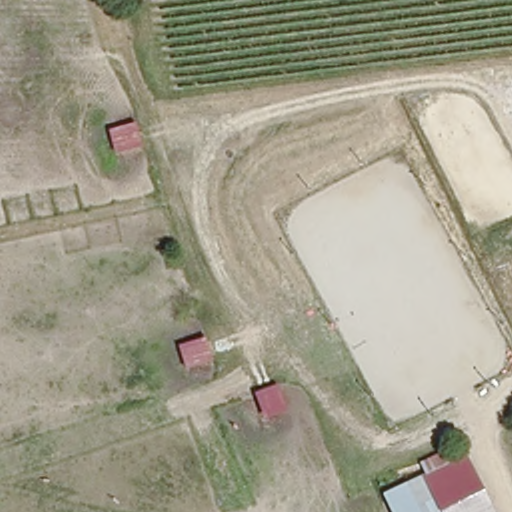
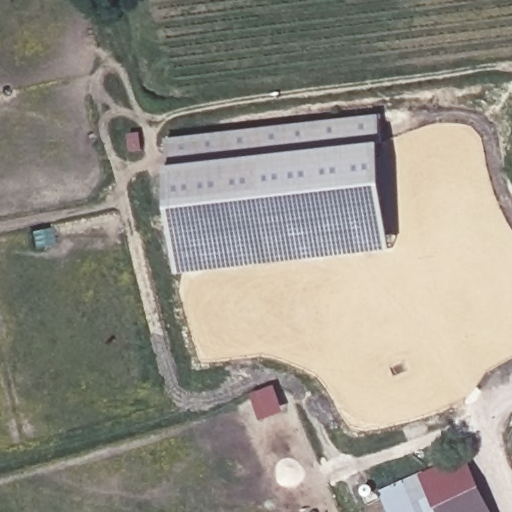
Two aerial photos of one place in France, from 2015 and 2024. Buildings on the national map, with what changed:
new [(395,235),(174,256),(165,140),(384,115),(395,235)]
unchanged [(463,458),(490,512),(385,512),(376,495),(463,458)]

